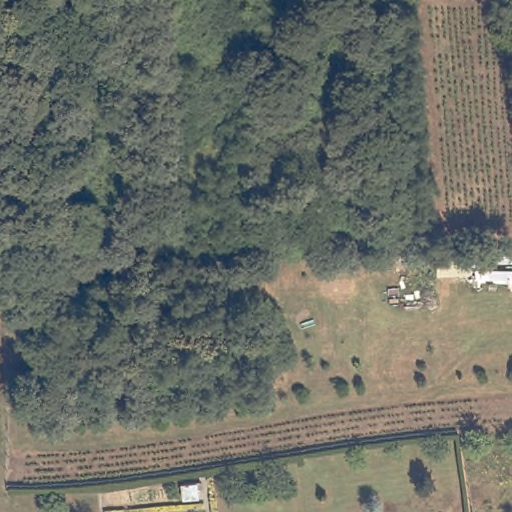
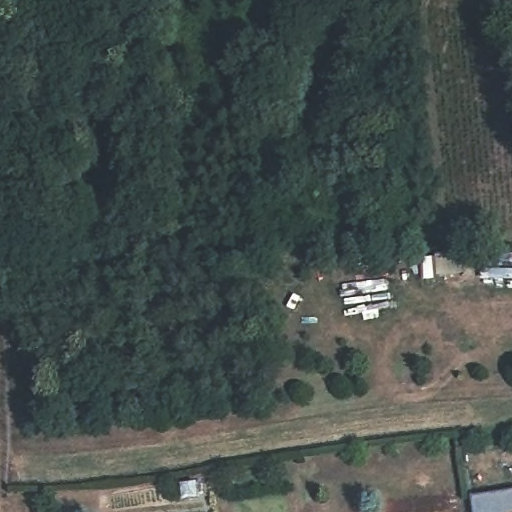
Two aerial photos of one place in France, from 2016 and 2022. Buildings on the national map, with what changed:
new [(512,512),(472,512),(470,494),(512,491),(512,512)]

